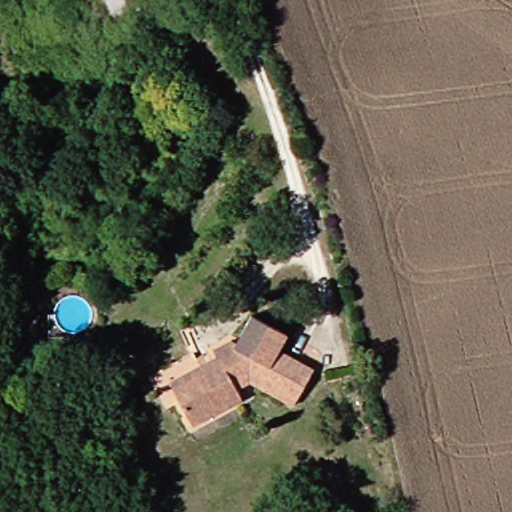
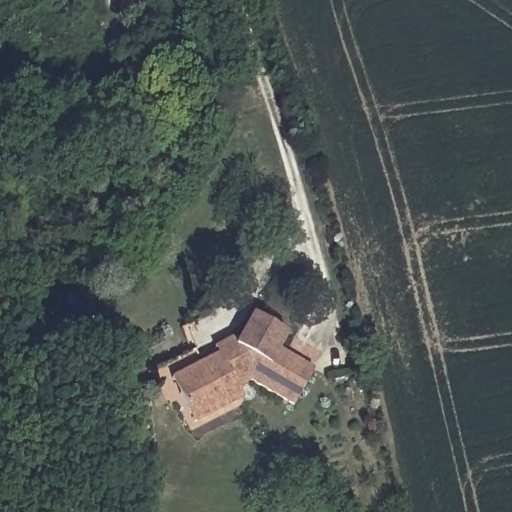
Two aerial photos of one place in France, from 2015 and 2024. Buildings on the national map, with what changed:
unchanged [(190,372),(245,339),(264,308),(298,330),(290,345),(322,365),(299,402),(264,378),(249,388),(252,395),(202,424),(185,393),(178,379),(190,372)]

